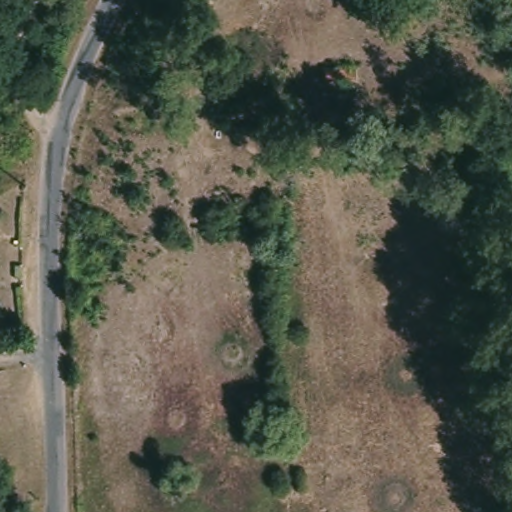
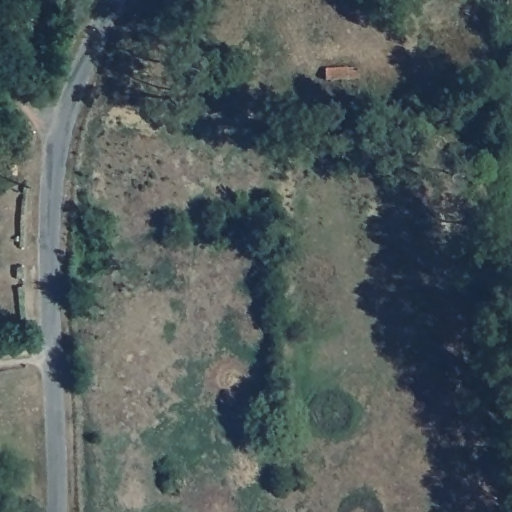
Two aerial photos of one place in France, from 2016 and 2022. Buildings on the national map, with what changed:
unchanged [(331,65),(362,64),(361,80),(332,80),(331,65)]

